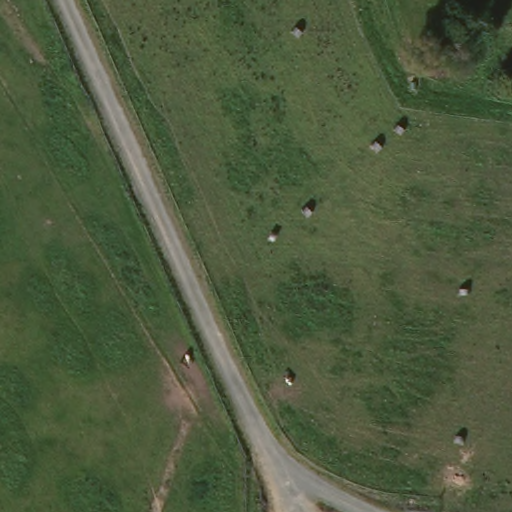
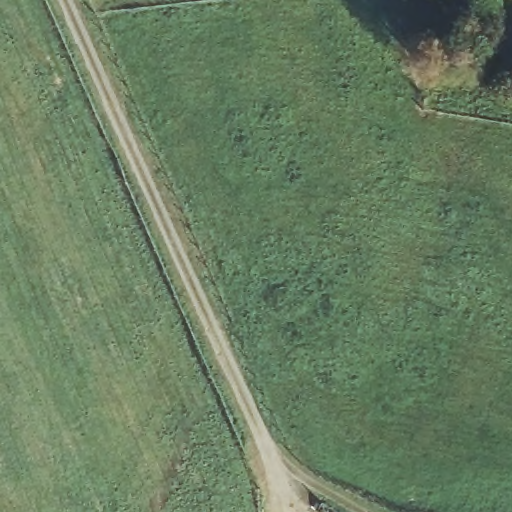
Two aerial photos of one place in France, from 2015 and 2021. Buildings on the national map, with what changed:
[]

